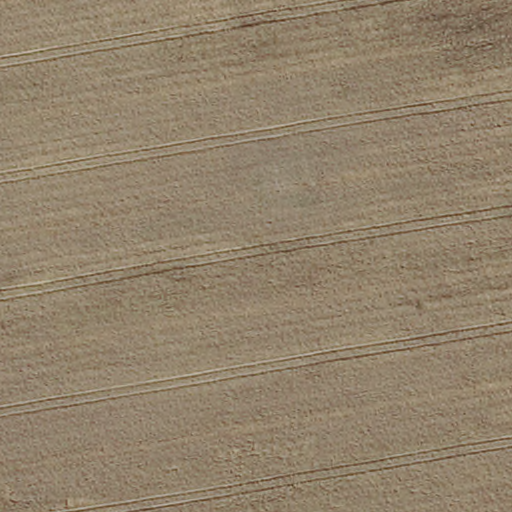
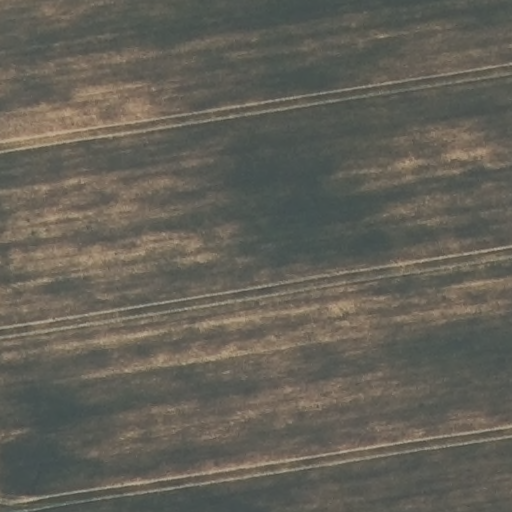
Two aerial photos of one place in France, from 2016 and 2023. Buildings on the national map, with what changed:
unchanged [(267,206),(260,181),(294,172),(300,198),(267,206)]

